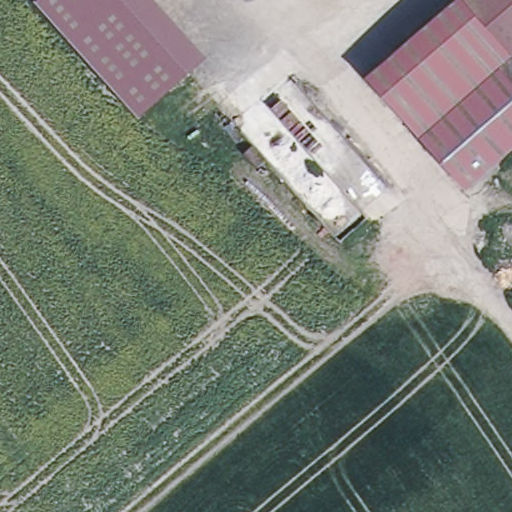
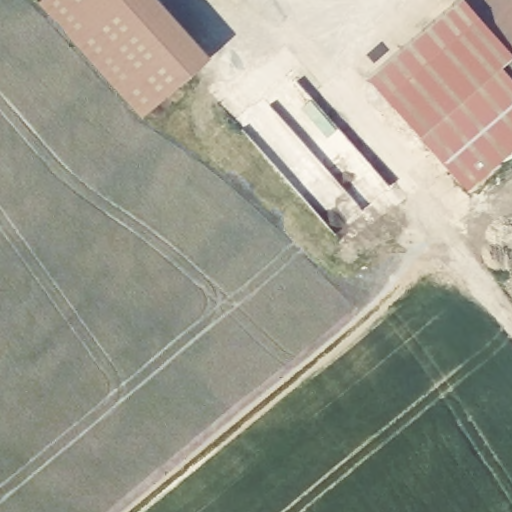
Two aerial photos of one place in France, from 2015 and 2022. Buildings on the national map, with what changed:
unchanged [(210,52),(138,115),(36,0),(164,0),(210,52)]
unchanged [(512,67),(512,145),(465,186),(419,134),(367,76),(456,0),(465,0),(512,67)]
unchanged [(465,0),(512,0),(512,67),(465,0)]

